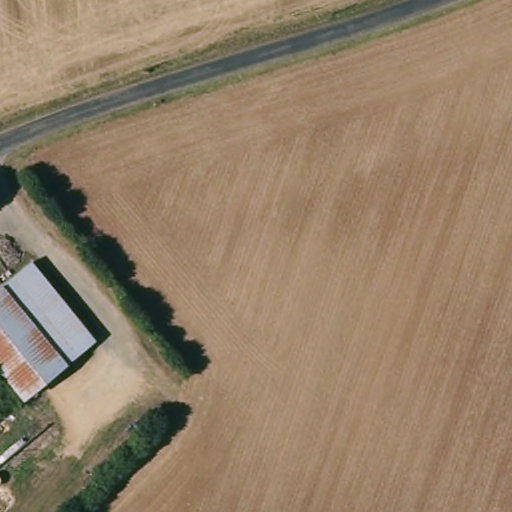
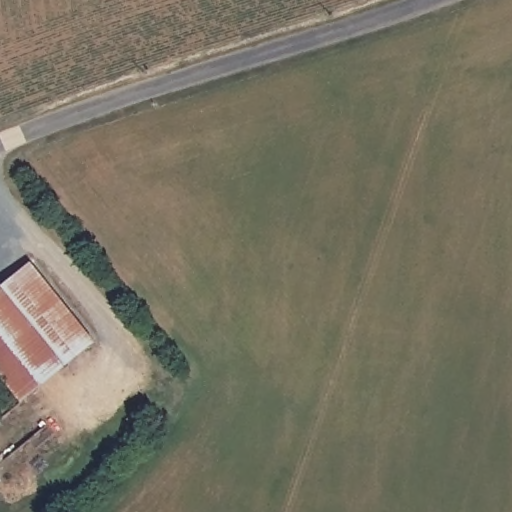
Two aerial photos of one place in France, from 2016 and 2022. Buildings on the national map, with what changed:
unchanged [(94,351),(30,403),(0,367),(0,297),(30,272),(94,351)]

